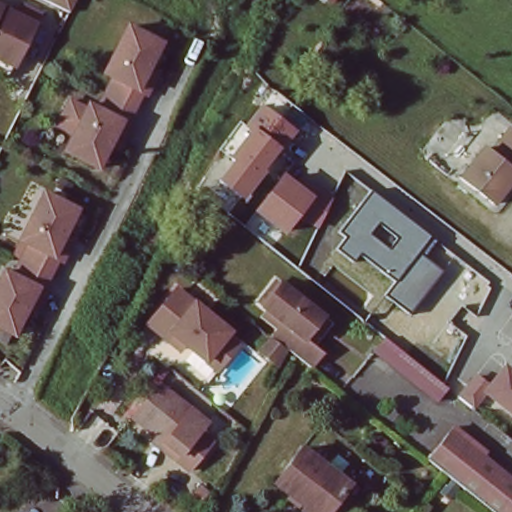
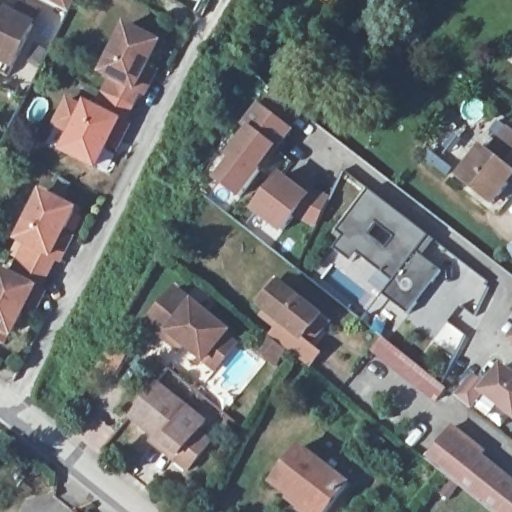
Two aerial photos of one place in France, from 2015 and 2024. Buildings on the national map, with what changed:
unchanged [(65,16),(45,7),(49,0),(73,0),(65,16)]
unchanged [(0,63),(0,10),(30,25),(8,67),(0,63)]
unchanged [(146,71),(155,76),(147,92),(143,90),(131,115),(105,102),(119,72),(106,68),(131,22),(163,40),(146,71)]
unchanged [(128,121),(133,124),(126,140),(116,136),(101,167),(68,152),(90,106),(101,109),(105,102),(131,115),(128,121)]
unchanged [(244,201),(218,181),(233,162),(228,158),(250,131),(243,125),(260,105),(296,133),(244,201)]
unchanged [(491,154),(511,131),(512,131),(512,182),(496,204),(462,179),(484,149),(491,154)]
unchanged [(316,231),(296,222),(281,234),(253,212),(285,173),(330,199),(316,231)]
unchanged [(32,241),(21,234),(43,187),(77,205),(60,239),(68,242),(61,258),(58,257),(46,278),(20,265),(32,241)]
unchanged [(409,316),(384,295),(395,281),(360,255),(351,263),(334,249),(345,237),(338,232),(369,191),(437,244),(425,257),(441,271),(409,316)]
unchanged [(47,290),(38,306),(30,301),(11,336),(0,329),(0,278),(3,272),(14,277),(20,265),(46,278),(41,288),(47,290)]
unchanged [(320,351),(310,362),(286,343),(272,332),(276,326),(260,312),(264,307),(261,305),(256,301),(273,278),(279,282),(321,315),(327,320),(310,342),(320,351)]
unchanged [(146,321),(150,313),(151,314),(173,284),(226,327),(222,332),(234,342),(216,365),(183,339),(176,346),(146,321)]
unchanged [(511,312),(512,310),(512,312),(511,312)]
unchanged [(510,342),(512,340),(512,344),(510,342)]
unchanged [(442,391),(448,396),(437,410),(371,357),(381,343),(442,391)]
unchanged [(483,397),(474,409),(459,398),(476,377),(489,385),(504,366),(512,371),(512,417),(483,397)]
unchanged [(156,432),(133,413),(158,381),(208,420),(200,430),(210,438),(188,469),(176,458),(151,438),(156,432)]
unchanged [(484,457),(512,480),(512,512),(497,512),(451,476),(432,461),(458,428),(488,452),(484,457)]
unchanged [(275,487),(303,452),(304,450),(349,485),(347,487),(328,512),(304,512),(305,511),(275,487)]

